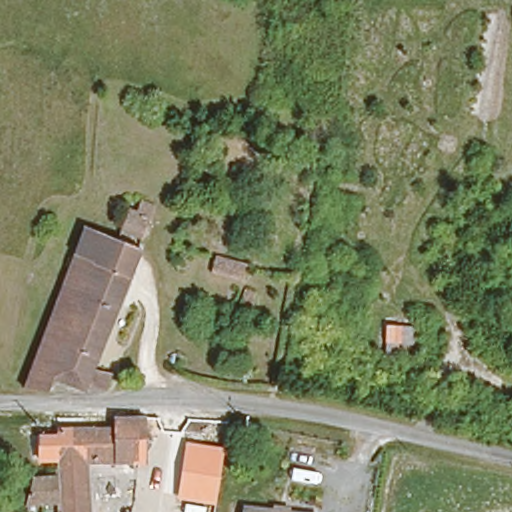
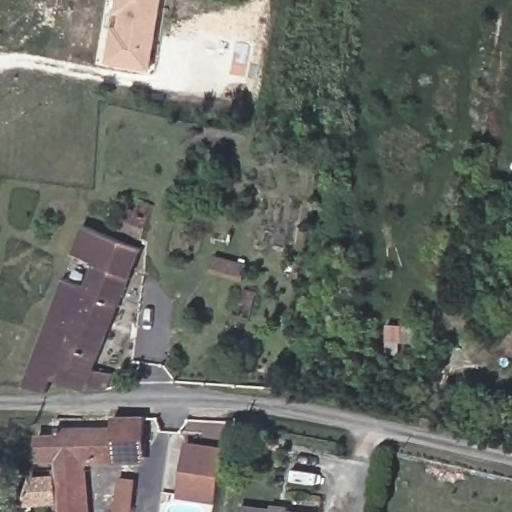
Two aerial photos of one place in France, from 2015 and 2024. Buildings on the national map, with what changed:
new [(106,59),(111,26),(117,26),(120,10),(114,9),(116,0),(157,0),(154,16),(151,32),(145,66),(106,59)]
unchanged [(127,232),(134,217),(135,217),(149,222),(154,211),(167,217),(157,243),(127,232)]
unchanged [(79,251),(89,228),(98,232),(124,242),(148,254),(136,278),(79,251)]
unchanged [(67,290),(63,289),(79,251),(136,278),(118,314),(67,290)]
unchanged [(225,274),(231,258),(258,269),(252,284),(225,274)]
unchanged [(112,369),(109,378),(107,385),(82,386),(50,372),(44,387),(21,388),(63,289),(67,290),(118,314),(91,364),(112,369)]
unchanged [(251,312),(254,296),(270,299),(267,316),(251,312)]
unchanged [(90,463),(89,512),(66,512),(66,504),(67,472),(67,461),(60,461),(60,435),(116,433),(116,419),(148,418),(144,464),(90,463)]
unchanged [(216,505),(178,499),(186,441),(225,447),(216,505)]
unchanged [(67,472),(66,504),(26,504),(26,472),(67,472)]
new [(116,501),(119,478),(135,480),(132,503),(130,510),(128,512),(115,512),(110,507),(116,501)]
unchanged [(244,508),(273,512),(243,512),(244,508)]

